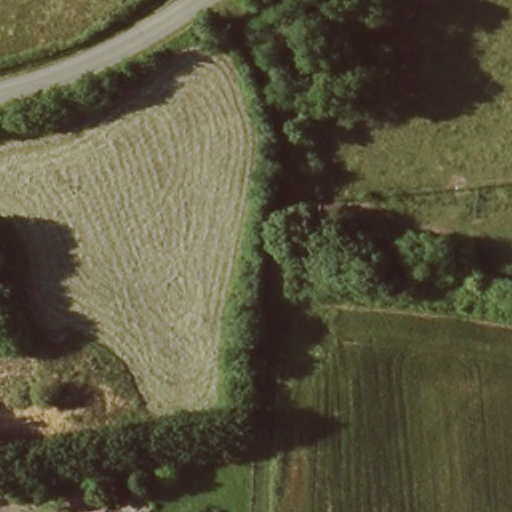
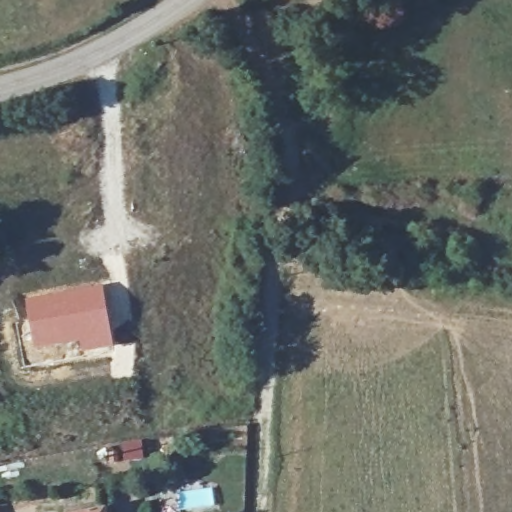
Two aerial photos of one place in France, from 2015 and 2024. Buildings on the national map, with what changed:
new [(101,281),(113,348),(81,354),(78,343),(34,350),(24,295),(101,281)]

